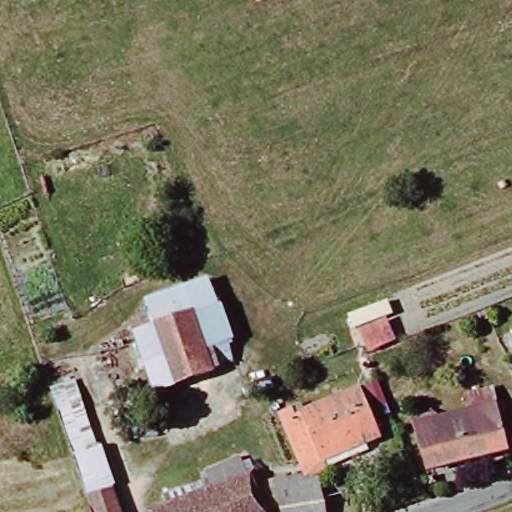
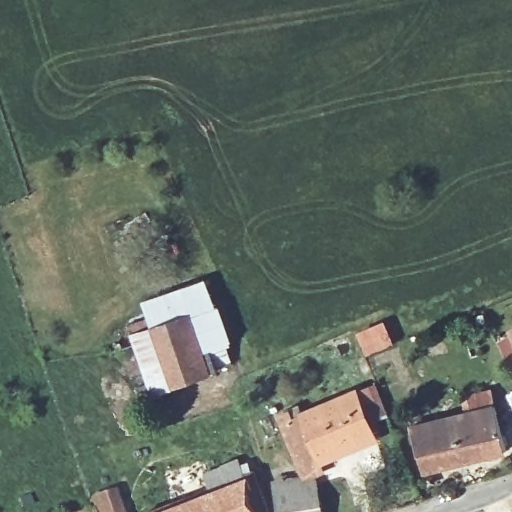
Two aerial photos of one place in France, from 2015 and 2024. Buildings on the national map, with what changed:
unchanged [(146,325),(140,299),(201,273),(209,301),(215,299),(230,339),(223,342),(229,360),(149,390),(124,332),(146,325)]
unchanged [(508,330),(512,328),(512,338),(508,330)]
demolished [(89,437),(96,435),(112,485),(104,488),(82,497),(44,385),(70,375),(89,437)]
unchanged [(418,470),(406,419),(424,413),(427,420),(460,414),(459,392),(486,388),(500,454),(418,470)]
unchanged [(318,460),(300,413),(352,393),(370,441),(318,460)]
unchanged [(197,475),(231,463),(237,477),(247,473),(262,512),(143,512),(202,489),(197,475)]
unchanged [(306,476),(315,500),(318,512),(273,512),(268,482),(306,476)]
unchanged [(104,488),(112,512),(87,512),(82,497),(104,488)]
unchanged [(81,512),(74,512),(80,510),(81,512)]

